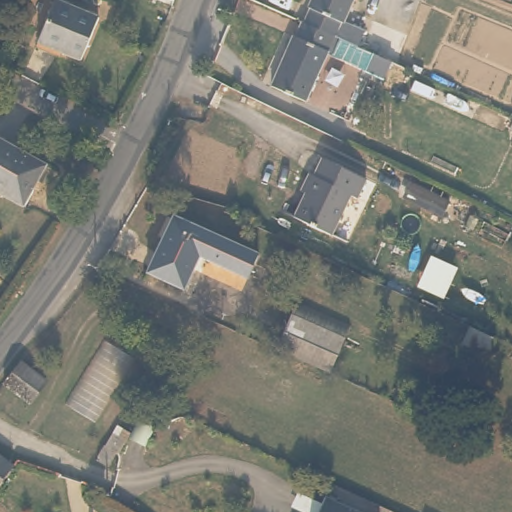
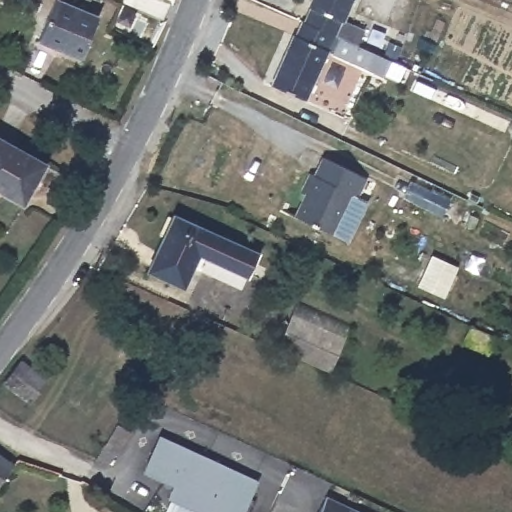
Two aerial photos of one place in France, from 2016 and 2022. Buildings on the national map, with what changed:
unchanged [(53,0),(64,0),(96,13),(78,56),(37,39),(53,0)]
unchanged [(162,0),(172,0),(171,4),(162,0)]
unchanged [(300,17),(304,17),(310,2),(306,0),(307,0),(347,0),(341,15),(364,24),(355,48),(296,26),(300,17)]
unchanged [(355,48),(367,53),(372,55),(368,68),(326,52),(309,94),(275,81),(296,26),(355,48)]
unchanged [(40,162),(18,205),(0,195),(0,141),(40,162)]
unchanged [(355,195),(348,193),(331,234),(297,219),(306,198),(301,196),(311,173),(315,175),(319,167),(323,158),(362,176),(359,185),(355,195)]
unchanged [(172,214),(259,253),(248,275),(198,251),(181,284),(145,267),(172,214)]
unchanged [(328,372),(273,348),(290,311),(345,336),(328,372)]
unchanged [(496,333),(488,347),(463,335),(471,322),(496,333)]
unchanged [(43,383),(30,401),(5,383),(5,382),(18,362),(43,383)]
unchanged [(93,457),(115,424),(129,434),(107,466),(93,457)]
new [(197,512),(165,498),(172,485),(141,471),(158,433),(259,478),(243,512),(197,512)]
unchanged [(10,467),(0,480),(0,459),(10,467)]
unchanged [(316,512),(323,497),(359,512),(316,512)]

